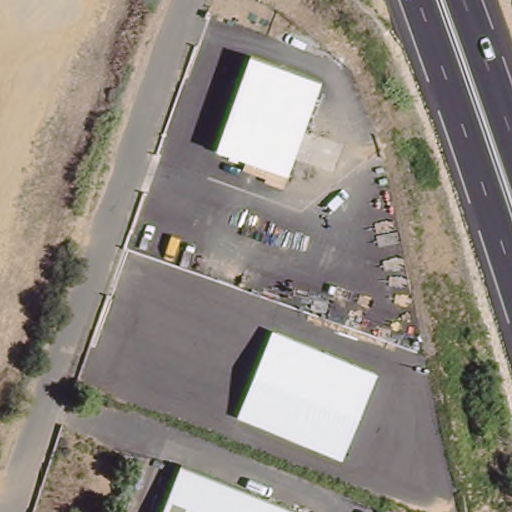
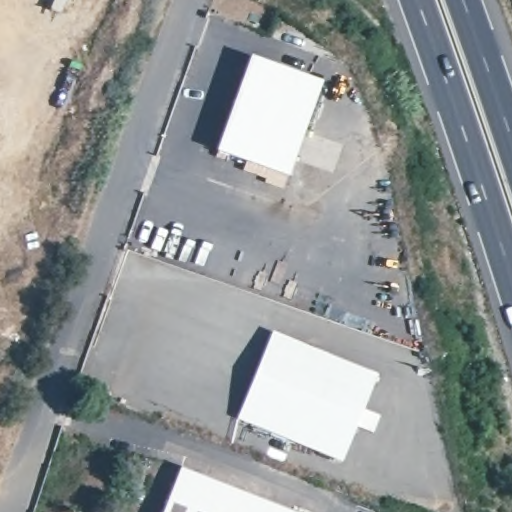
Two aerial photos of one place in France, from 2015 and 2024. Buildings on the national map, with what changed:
unchanged [(323,81),(290,176),(217,150),(252,55),(323,81)]
unchanged [(241,415),(272,328),(380,374),(345,456),(241,415)]
unchanged [(295,512),(164,512),(182,468),(295,512)]

